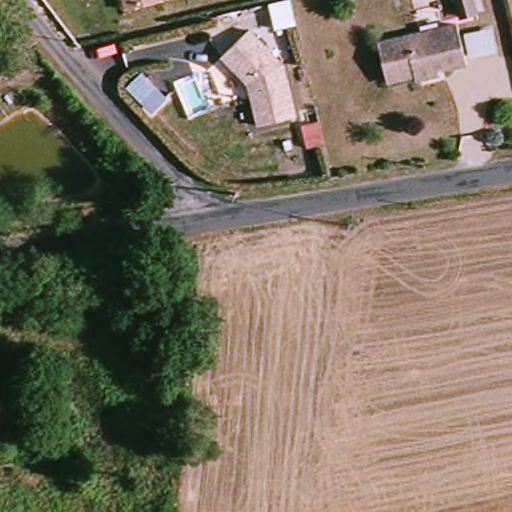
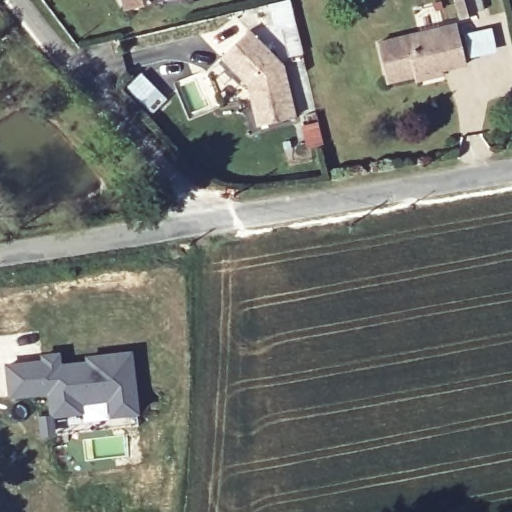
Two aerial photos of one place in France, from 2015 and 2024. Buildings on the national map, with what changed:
unchanged [(125,11),(123,0),(162,0),(162,3),(125,11)]
unchanged [(286,8),(284,0),(306,0),(306,4),(286,8)]
unchanged [(479,0),(482,11),(466,15),(462,0),(479,0)]
unchanged [(424,75),(396,83),(386,43),(463,24),(473,64),(451,69),(453,74),(435,79),(426,81),(424,75)]
unchanged [(301,122),(265,131),(254,89),(227,63),(255,36),(288,70),(301,122)]
new [(3,366),(41,360),(41,355),(59,353),(61,364),(86,361),(86,356),(132,352),(139,414),(110,418),(108,401),(81,404),(82,414),(52,418),(55,435),(41,438),(38,417),(50,414),(47,394),(9,398),(3,366)]

